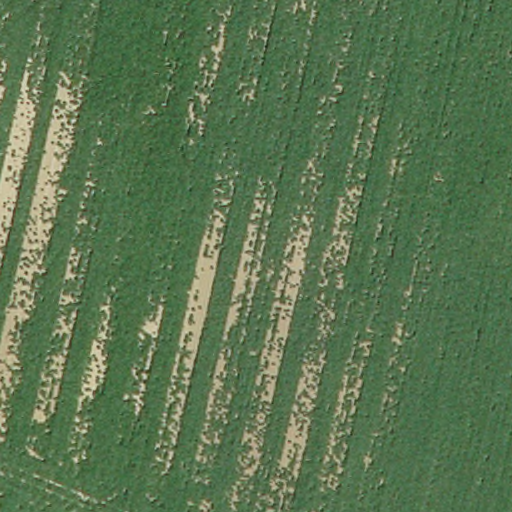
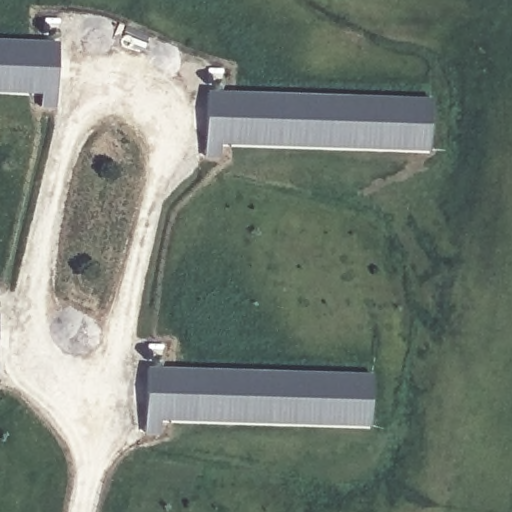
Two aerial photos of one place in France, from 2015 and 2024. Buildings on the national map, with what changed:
new [(0,38),(58,40),(55,108),(40,107),(42,93),(0,91),(0,38)]
new [(432,97),(431,149),(220,142),(220,155),(204,155),(207,90),(432,97)]
new [(373,372),(370,424),(161,419),(160,433),(144,431),(147,367),(373,372)]

